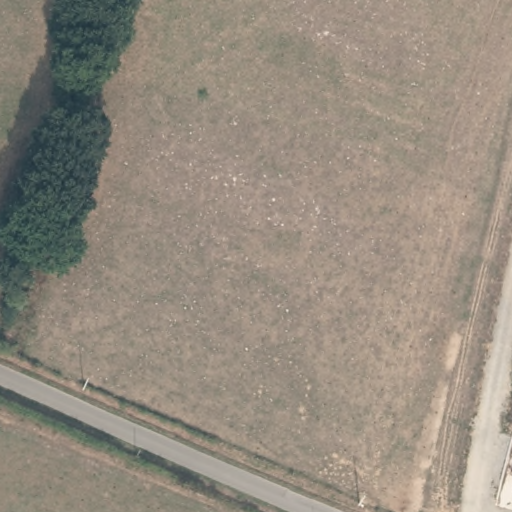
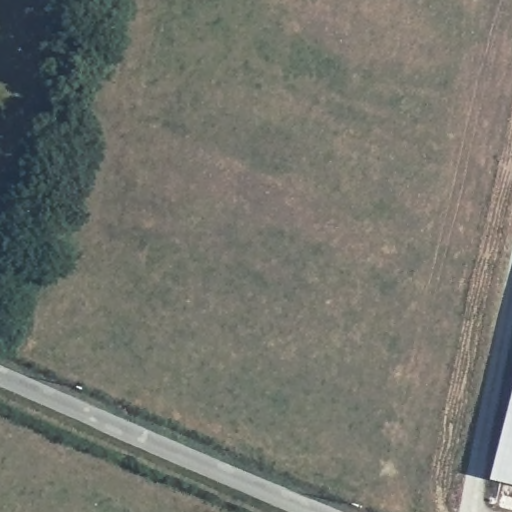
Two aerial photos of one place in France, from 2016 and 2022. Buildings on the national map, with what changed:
new [(512,409),(512,486),(495,482),(512,409)]

